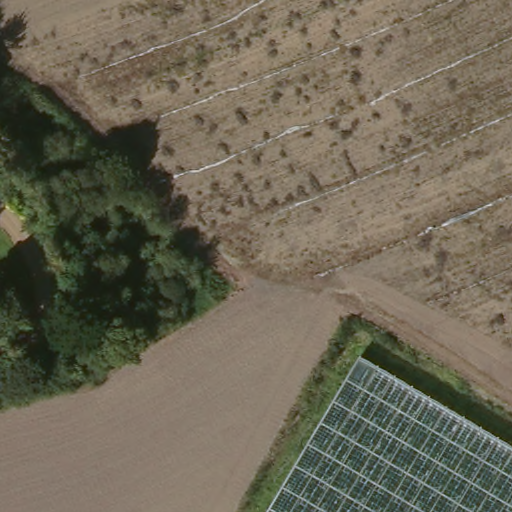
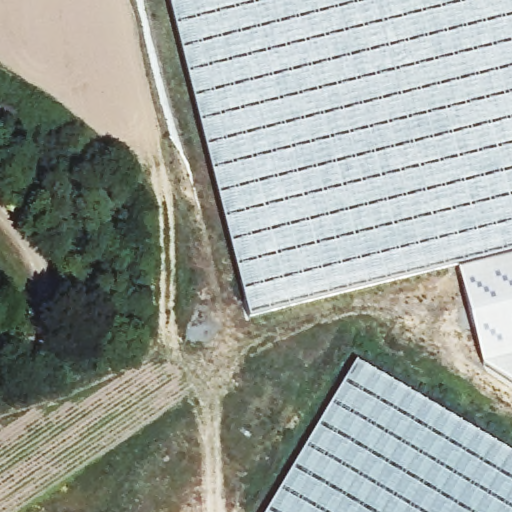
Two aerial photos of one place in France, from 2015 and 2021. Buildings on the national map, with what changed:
new [(462,265),(252,317),(173,0),(512,0),(512,253),(462,265)]
new [(483,366),(462,265),(512,253),(512,385),(483,366)]
unchanged [(512,450),(512,512),(263,512),(353,361),(512,450)]

